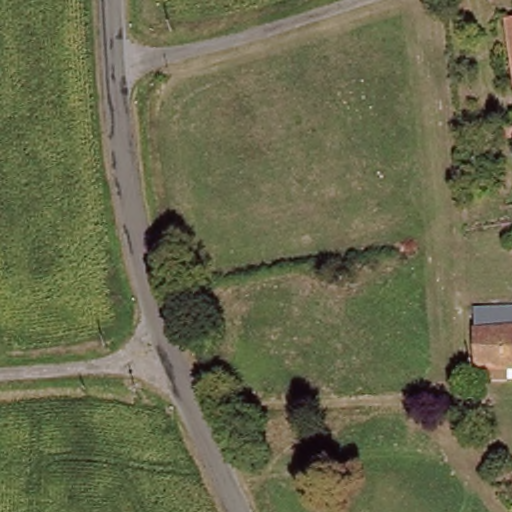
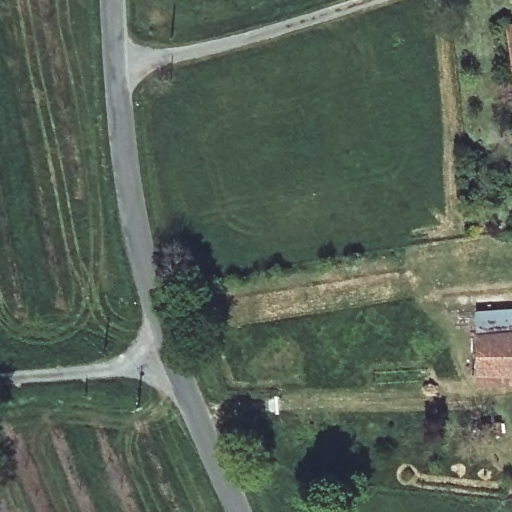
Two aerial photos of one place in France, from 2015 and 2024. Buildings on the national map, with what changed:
unchanged [(512,90),(506,20),(512,19),(512,90)]
unchanged [(484,302),(512,301),(512,363),(486,363),(484,302)]

